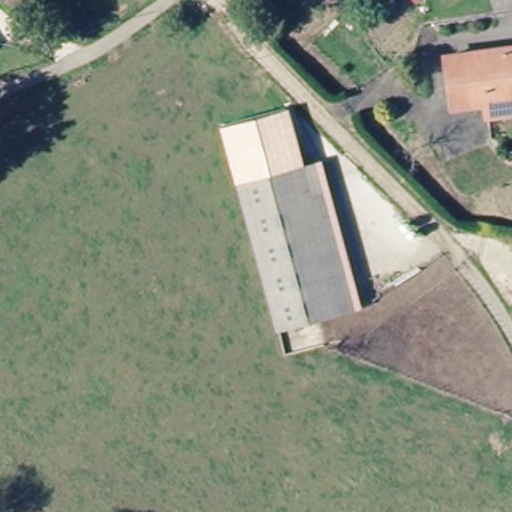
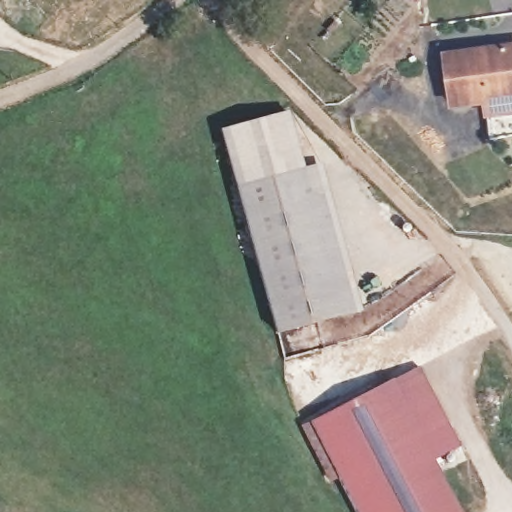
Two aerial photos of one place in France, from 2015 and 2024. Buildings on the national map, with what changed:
unchanged [(493,127),(488,108),(457,114),(448,62),(512,51),(512,125),(493,127)]
unchanged [(308,202),(299,170),(233,186),(219,129),(288,111),(304,168),(320,165),(327,197),(308,202)]
unchanged [(270,335),(233,186),(299,170),(308,202),(336,318),(270,335)]
unchanged [(327,197),(356,313),(336,318),(308,202),(327,197)]
new [(309,422),(419,368),(459,449),(435,461),(461,512),(356,512),(309,422)]

